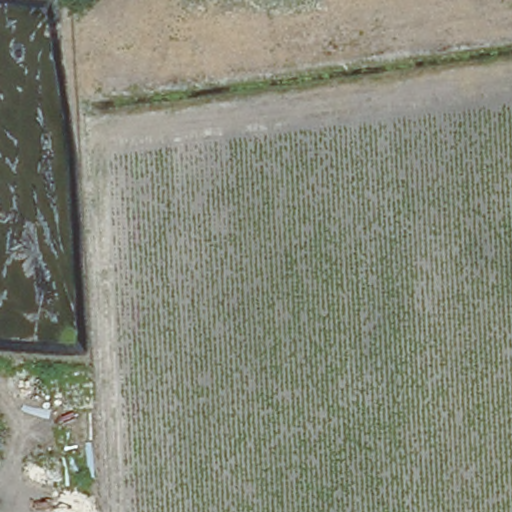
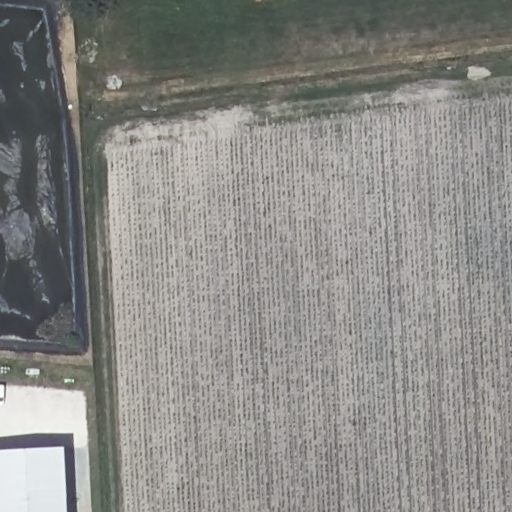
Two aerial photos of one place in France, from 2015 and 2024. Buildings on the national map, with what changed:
new [(66,450),(70,512),(0,512),(0,450),(66,450)]

